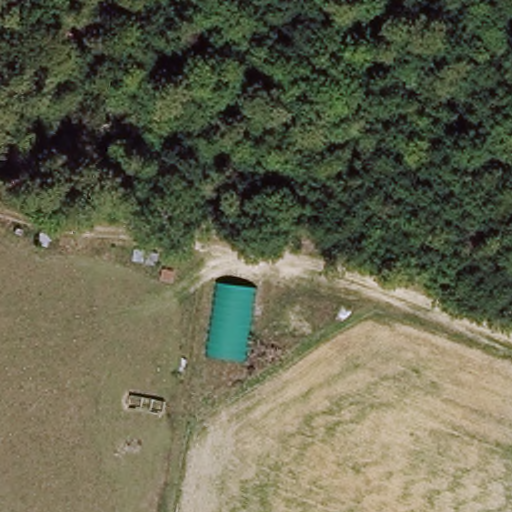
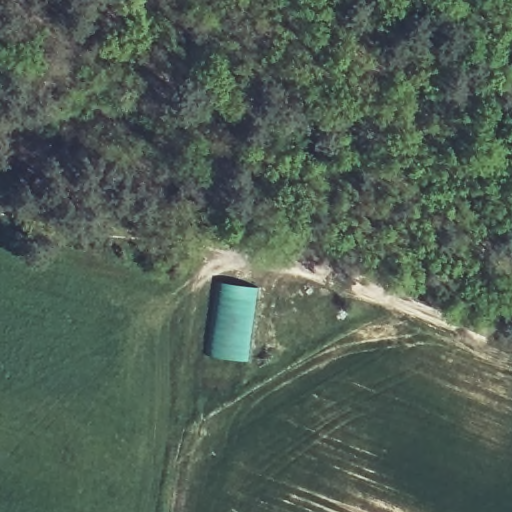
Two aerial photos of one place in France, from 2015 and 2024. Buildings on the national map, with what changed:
unchanged [(218,285),(260,289),(260,359),(221,353),(218,285)]

